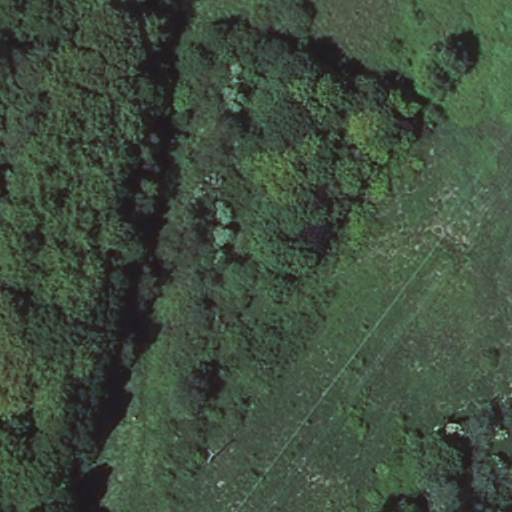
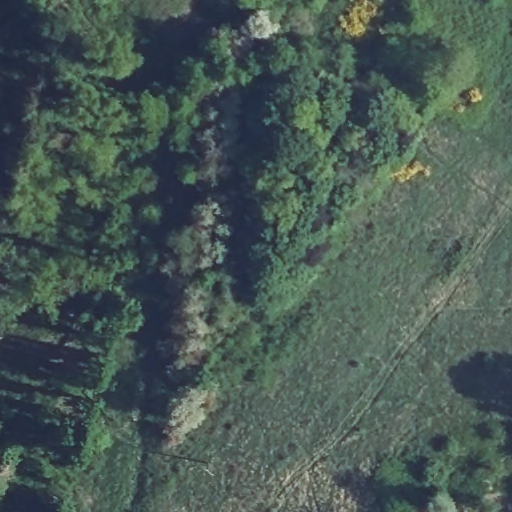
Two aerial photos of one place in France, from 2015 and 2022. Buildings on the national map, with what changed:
[]

